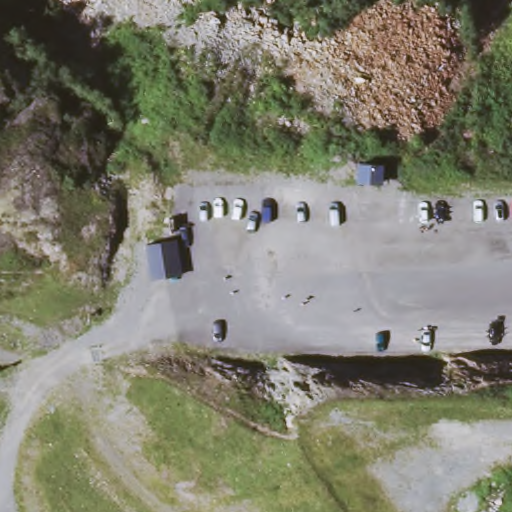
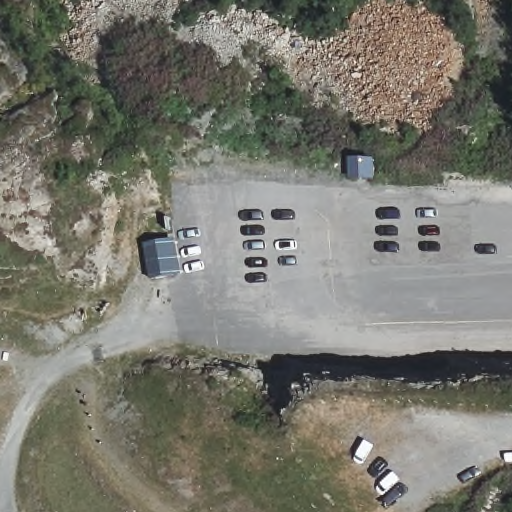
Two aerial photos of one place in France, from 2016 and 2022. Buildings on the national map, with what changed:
unchanged [(386,160),(387,181),(358,181),(359,161),(386,160)]
unchanged [(139,244),(169,241),(172,258),(174,277),(144,281),(139,244)]

